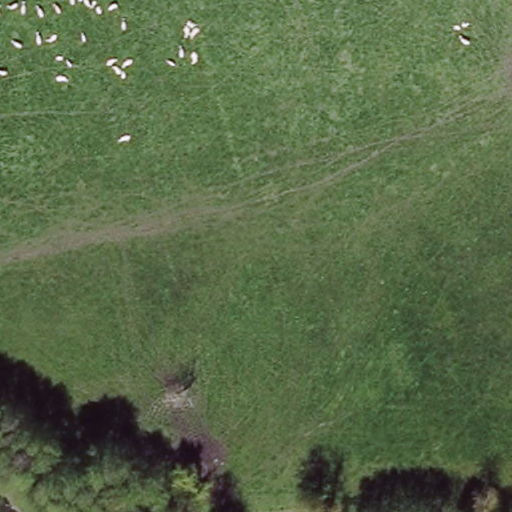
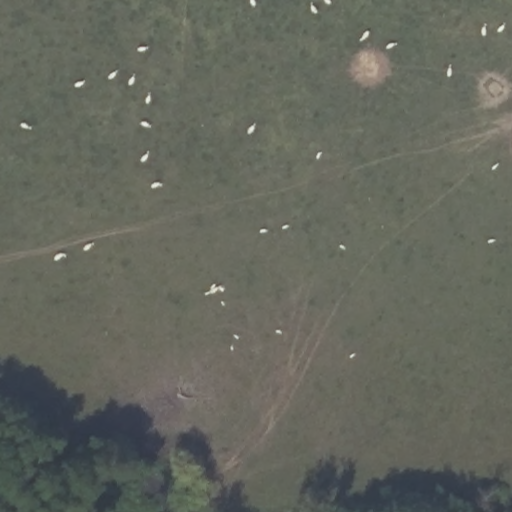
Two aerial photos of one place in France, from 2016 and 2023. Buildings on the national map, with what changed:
[]

